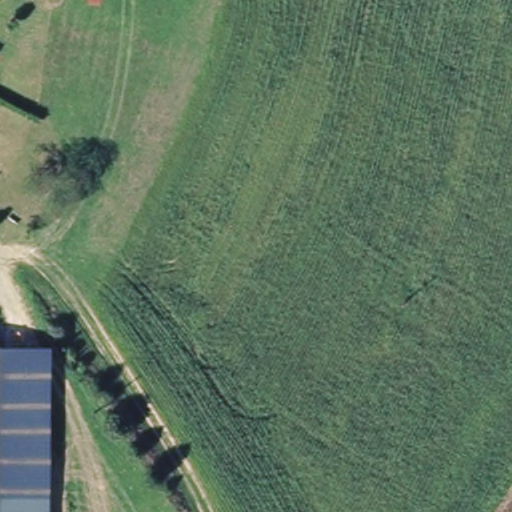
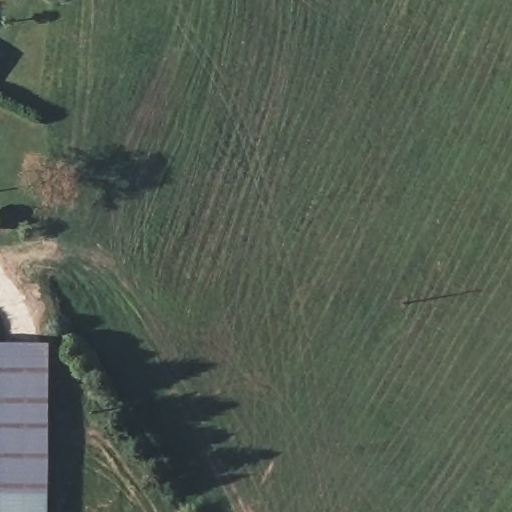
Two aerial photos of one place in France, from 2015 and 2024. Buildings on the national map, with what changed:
unchanged [(0,462),(0,350),(8,351),(0,462)]
unchanged [(58,354),(47,512),(0,512),(0,462),(8,351),(58,354)]

